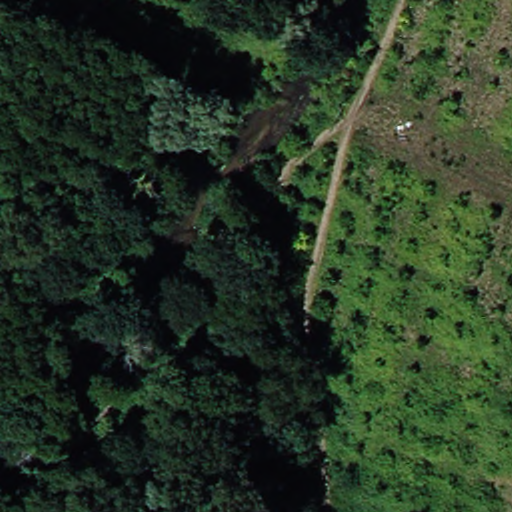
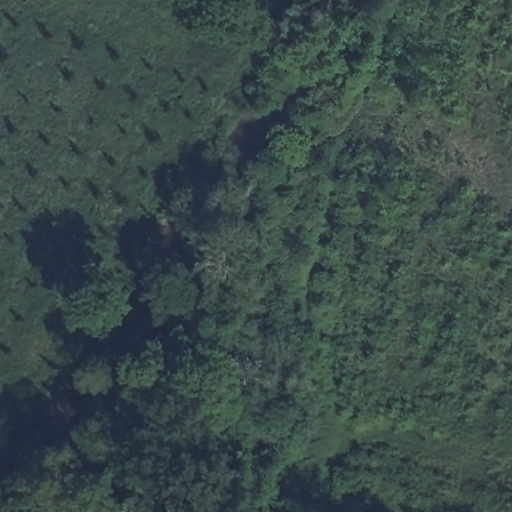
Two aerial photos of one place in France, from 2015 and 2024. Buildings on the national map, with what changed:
[]

